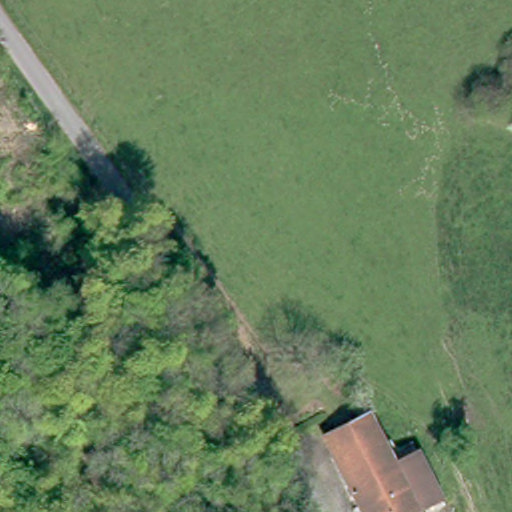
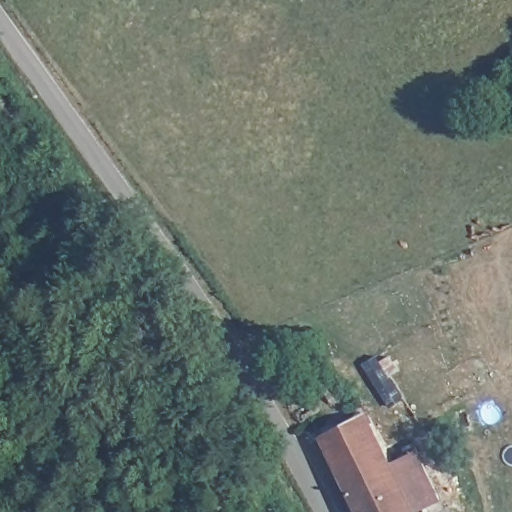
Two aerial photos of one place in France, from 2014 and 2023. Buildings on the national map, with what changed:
unchanged [(408,447),(417,443),(445,499),(418,512),(367,512),(333,446),(378,423),(400,464),(413,457),(408,447)]

